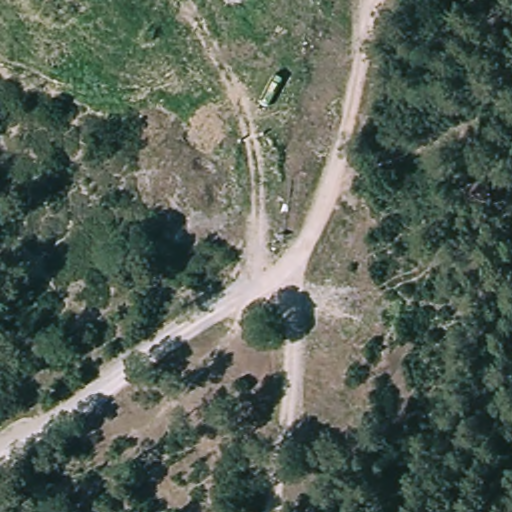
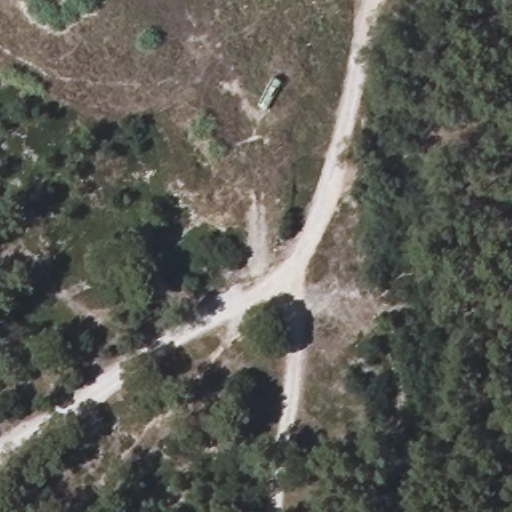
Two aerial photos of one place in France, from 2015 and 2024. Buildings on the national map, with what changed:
unchanged [(487,185),(492,204),(467,210),(463,190),(487,185)]

